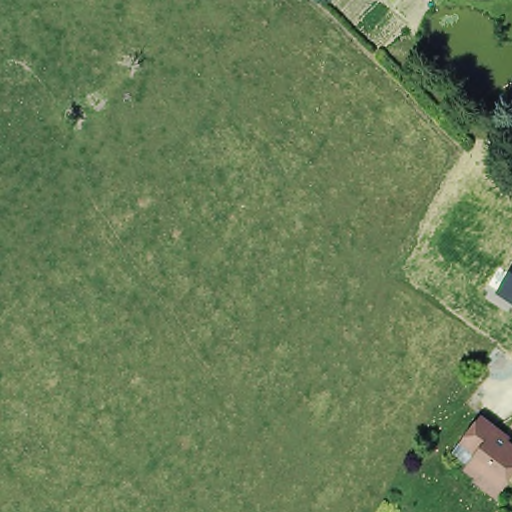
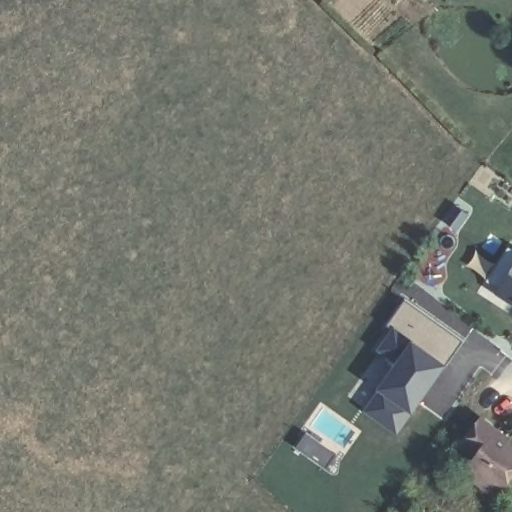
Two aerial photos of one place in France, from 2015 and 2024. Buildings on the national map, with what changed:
unchanged [(512,269),(512,304),(496,294),(512,269)]
new [(372,350),(389,325),(405,297),(463,339),(446,364),(396,436),(347,398),(376,353),(372,350)]
unchanged [(476,477),(465,467),(476,452),(461,440),(481,415),(496,427),(494,431),(512,445),(512,472),(501,486),(481,471),(476,477)]
new [(305,430),(335,453),(323,469),(293,447),(305,430)]

